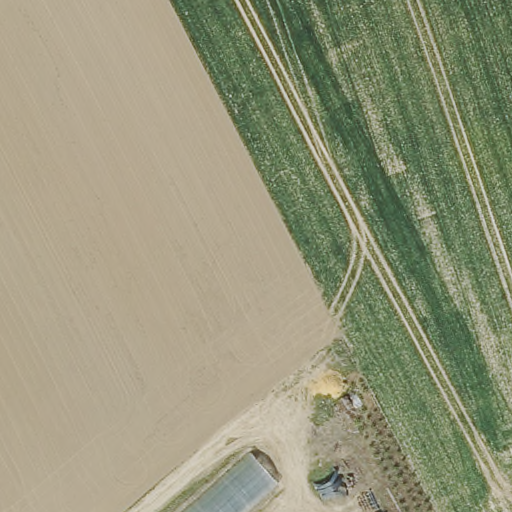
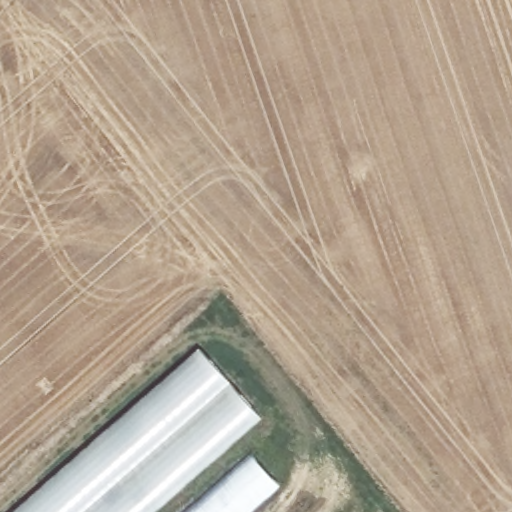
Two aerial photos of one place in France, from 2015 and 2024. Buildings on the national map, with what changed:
new [(155,512),(14,512),(198,349),(261,419),(155,512)]
unchanged [(250,512),(186,512),(251,455),(280,485),(250,512)]

